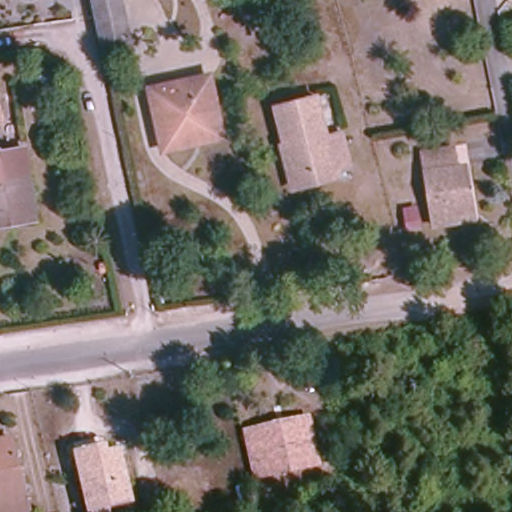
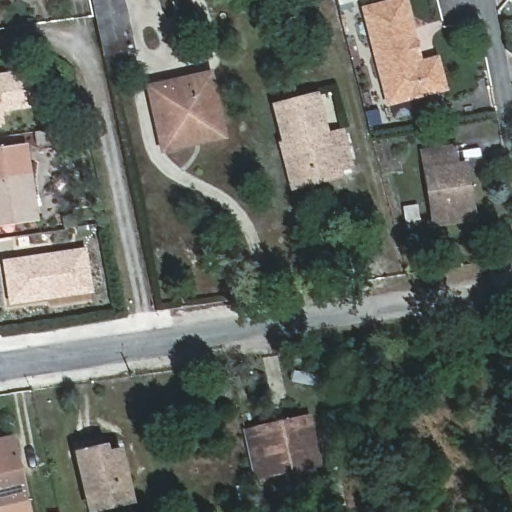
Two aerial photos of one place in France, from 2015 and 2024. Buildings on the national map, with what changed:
unchanged [(97,12),(94,0),(124,0),(134,41),(105,49),(97,12)]
new [(360,6),(385,0),(406,0),(422,59),(438,55),(447,89),(385,106),(360,6)]
unchanged [(206,72),(222,138),(160,151),(145,85),(206,72)]
unchanged [(325,177),(291,185),(271,103),(312,92),(323,133),(338,130),(346,162),(348,171),(325,177)]
unchanged [(430,222),(429,214),(419,149),(429,148),(454,144),(456,160),(460,182),(465,181),(469,207),(470,216),(430,222)]
unchanged [(39,216),(0,223),(0,151),(29,147),(39,216)]
new [(90,289),(10,302),(4,262),(84,251),(90,289)]
unchanged [(277,422),(297,417),(315,413),(326,462),(265,476),(256,478),(253,466),(245,429),(255,427),(277,422)]
unchanged [(27,512),(0,512),(0,443),(10,441),(27,512)]
unchanged [(102,449),(104,455),(118,453),(130,503),(109,508),(110,512),(89,512),(75,454),(102,449)]

